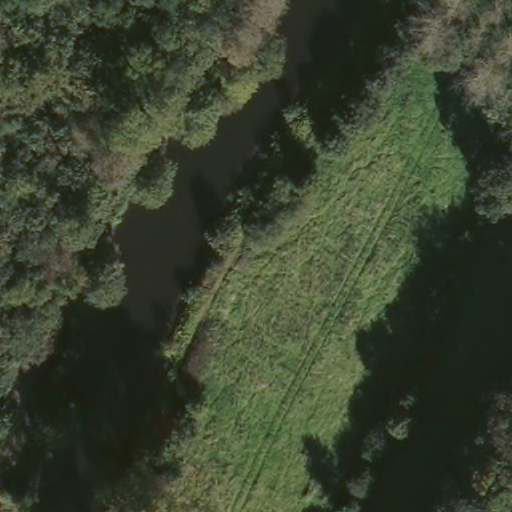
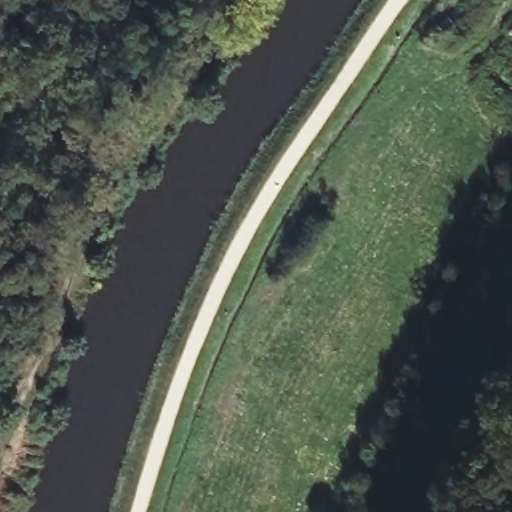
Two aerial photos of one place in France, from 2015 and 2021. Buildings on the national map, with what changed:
[]

